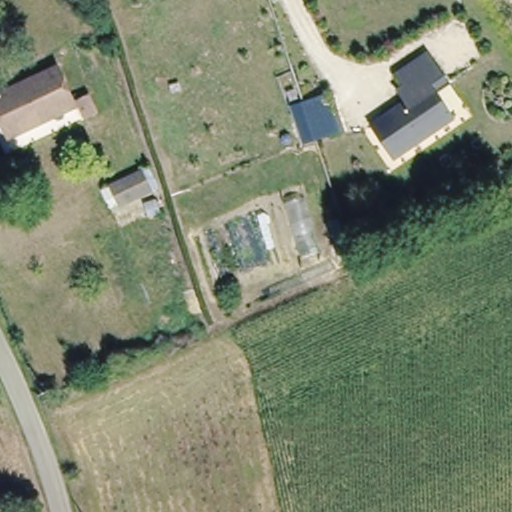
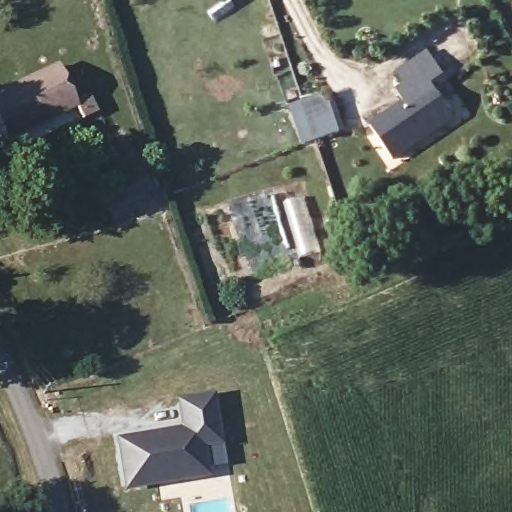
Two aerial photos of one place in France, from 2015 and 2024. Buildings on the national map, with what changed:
unchanged [(369,127),(402,103),(395,93),(403,88),(395,76),(425,55),(446,86),(436,93),(455,122),(393,165),(369,127)]
unchanged [(1,135),(0,132),(0,88),(51,64),(52,66),(67,99),(82,93),(90,109),(75,116),(70,104),(1,135)]
unchanged [(302,101),(326,92),(340,132),(314,139),(302,101)]
unchanged [(104,180),(145,165),(152,187),(112,201),(104,180)]
new [(364,228),(371,246),(355,253),(348,236),(364,228)]
new [(125,490),(115,439),(180,428),(176,400),(215,394),(222,445),(205,448),(209,477),(125,490)]

